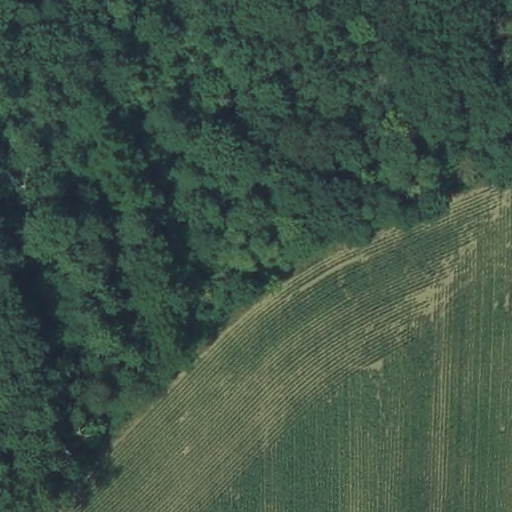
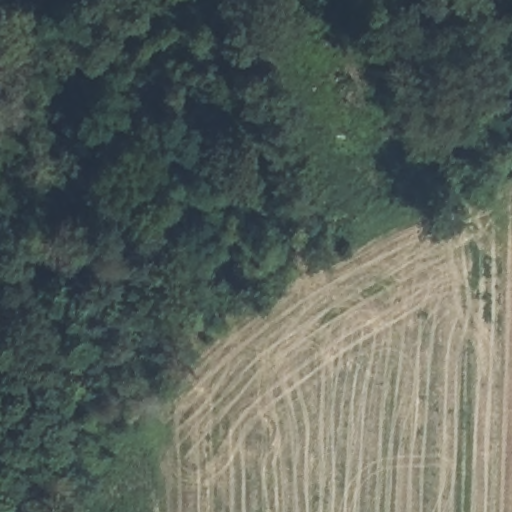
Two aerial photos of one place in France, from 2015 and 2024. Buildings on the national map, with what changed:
[]

